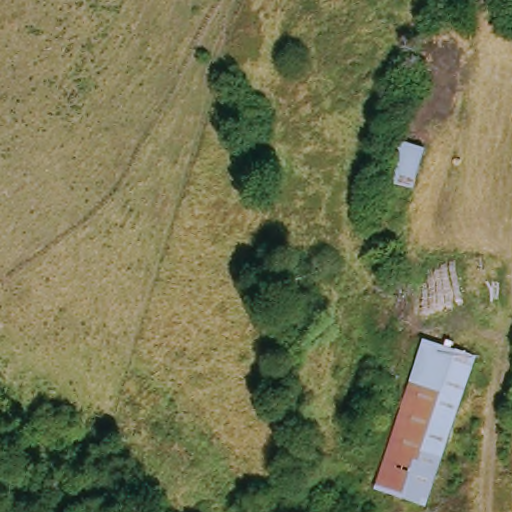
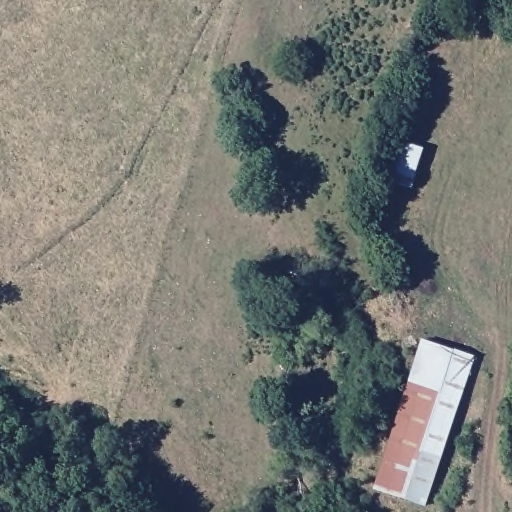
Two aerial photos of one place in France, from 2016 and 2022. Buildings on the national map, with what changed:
unchanged [(418,196),(391,192),(400,145),(425,151),(418,196)]
unchanged [(482,360),(433,511),(379,495),(428,343),(482,360)]

